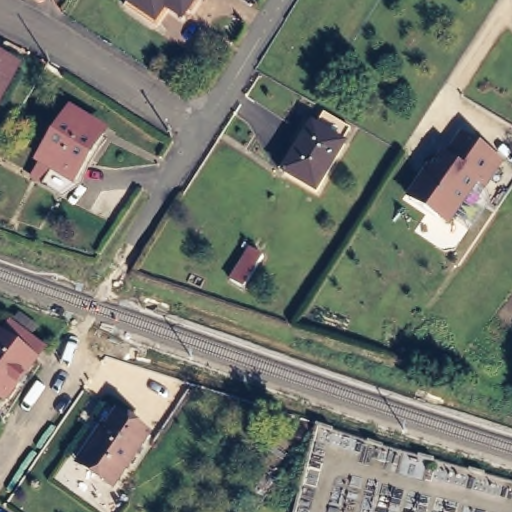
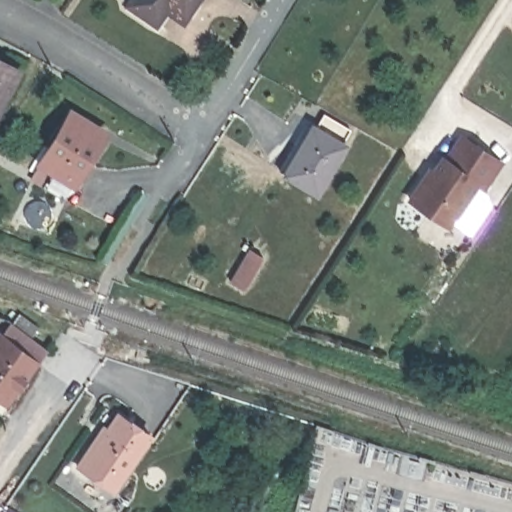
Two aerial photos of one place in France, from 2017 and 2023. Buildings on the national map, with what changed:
unchanged [(167,8),(158,21),(131,2),(132,0),(196,0),(184,19),(167,8)]
unchanged [(27,70),(0,117),(0,55),(27,70)]
unchanged [(72,109),(103,129),(72,176),(40,156),(72,109)]
unchanged [(290,173),(318,126),(348,143),(321,190),(290,173)]
unchanged [(422,183),(438,159),(442,161),(458,137),(492,160),(497,163),(487,177),(480,187),(473,183),(445,226),(406,200),(419,181),(422,183)]
unchanged [(247,293),(230,281),(250,251),(268,263),(247,293)]
unchanged [(0,388),(0,345),(1,346),(10,335),(42,360),(12,398),(0,388)]
unchanged [(80,463),(107,426),(111,429),(122,414),(143,428),(153,436),(116,489),(105,481),(85,467),(80,463)]

